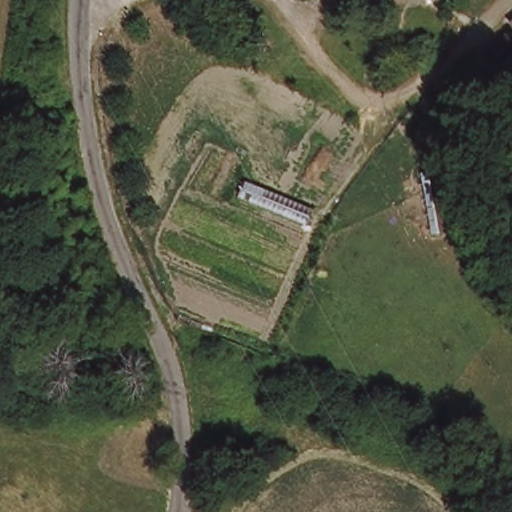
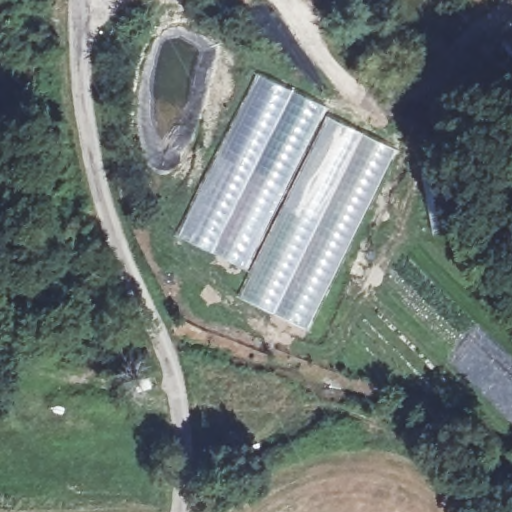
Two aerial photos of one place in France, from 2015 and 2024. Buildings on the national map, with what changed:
new [(199,184),(241,108),(247,110),(243,119),(257,126),(255,132),(265,136),(290,89),(327,106),(325,113),(315,136),(313,135),(269,224),(249,271),(175,234),(199,184)]
new [(249,271),(269,224),(313,135),(315,136),(325,113),(398,150),(307,330),(237,296),(249,271)]

